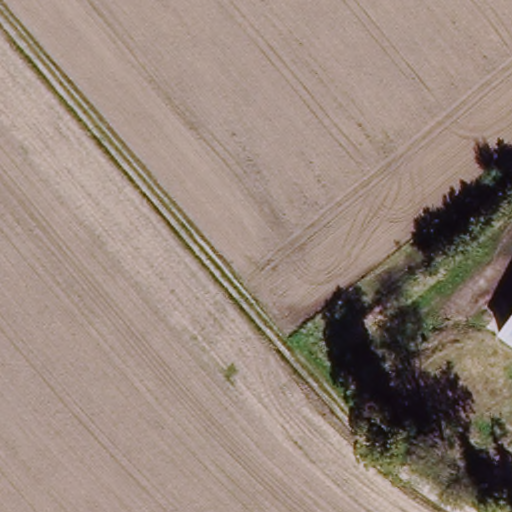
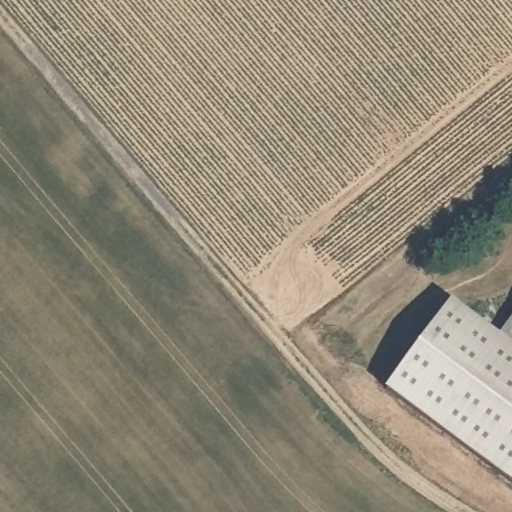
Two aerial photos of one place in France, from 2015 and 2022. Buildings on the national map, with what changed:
new [(512,486),(383,391),(450,299),(498,337),(512,347),(512,486)]
unchanged [(512,347),(498,337),(512,318),(512,347)]

